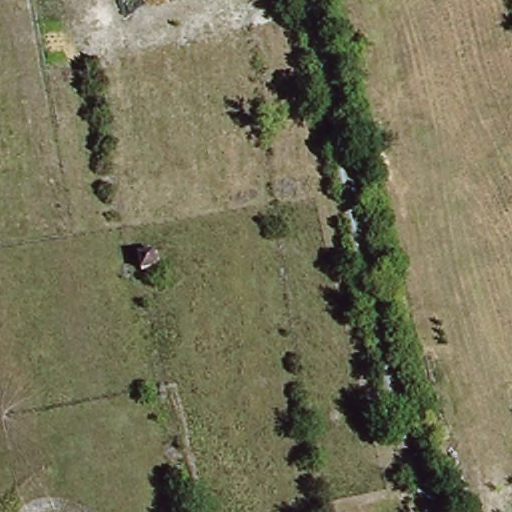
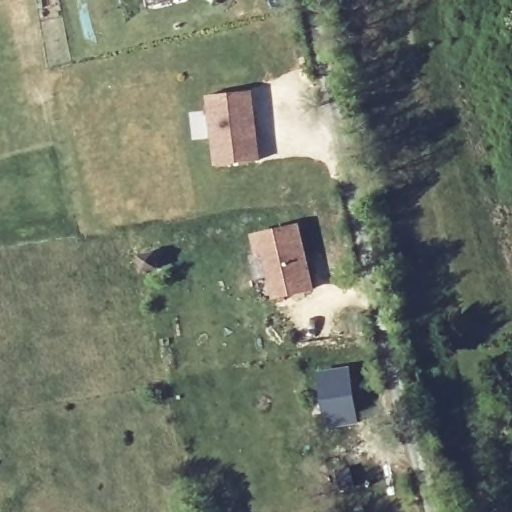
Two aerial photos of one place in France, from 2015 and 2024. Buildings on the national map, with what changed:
new [(210,111),(207,96),(250,91),(259,161),(216,166),(212,139),(192,141),(189,114),(210,111)]
new [(299,222),(315,289),(263,301),(249,234),(299,222)]
unchanged [(156,242),(163,261),(148,267),(140,249),(156,242)]
new [(350,365),(359,423),(325,429),(315,371),(350,365)]

